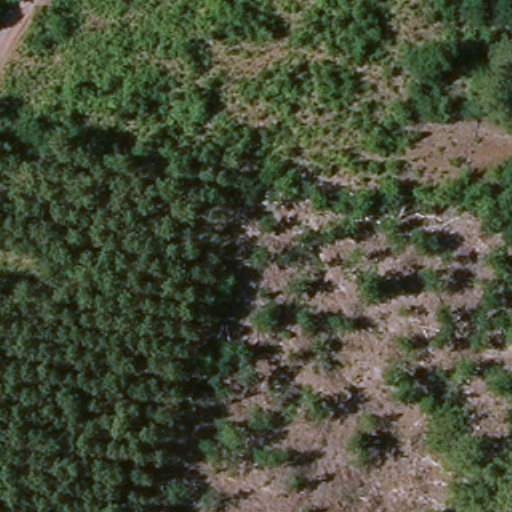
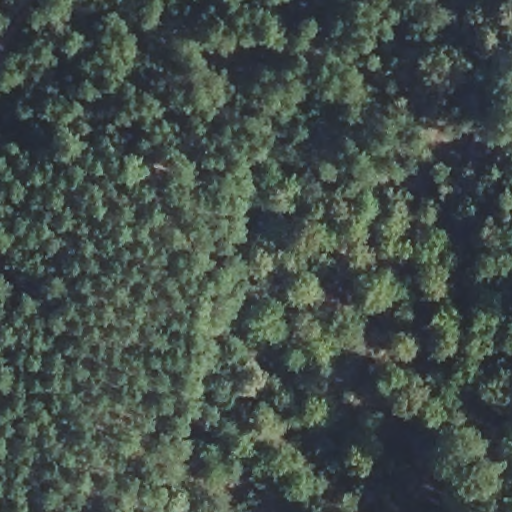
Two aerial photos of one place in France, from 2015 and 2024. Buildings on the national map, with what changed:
[]

